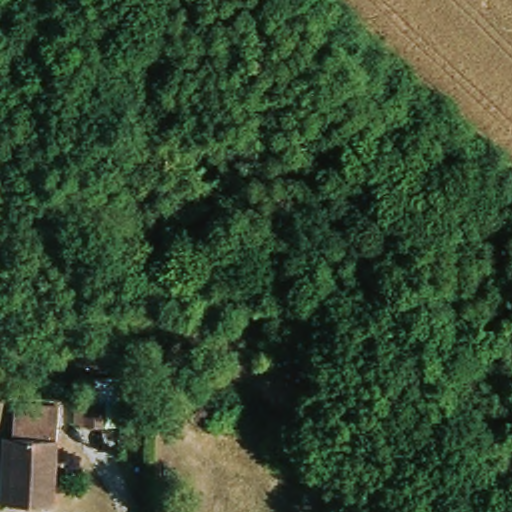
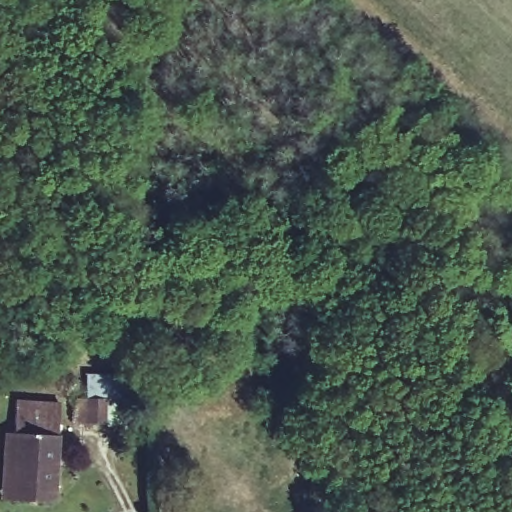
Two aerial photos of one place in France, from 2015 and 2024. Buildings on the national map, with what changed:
unchanged [(122,398),(119,422),(70,419),(72,394),(122,398)]
unchanged [(57,432),(52,500),(0,490),(0,449),(1,428),(12,428),(12,415),(53,418),(53,431),(57,432)]

